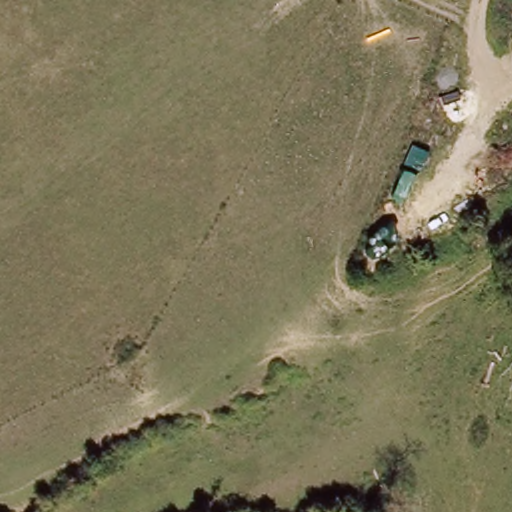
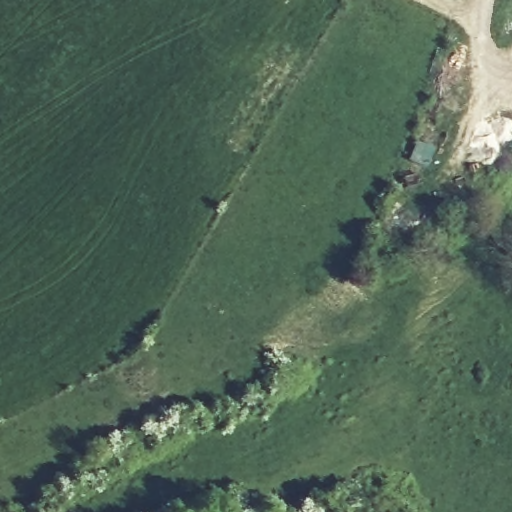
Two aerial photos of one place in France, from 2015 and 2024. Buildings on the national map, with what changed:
[]

